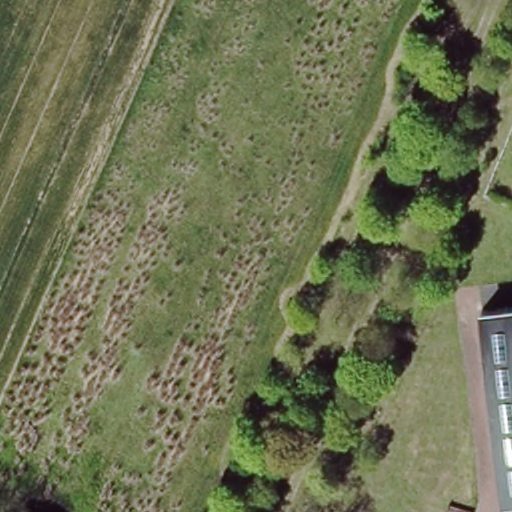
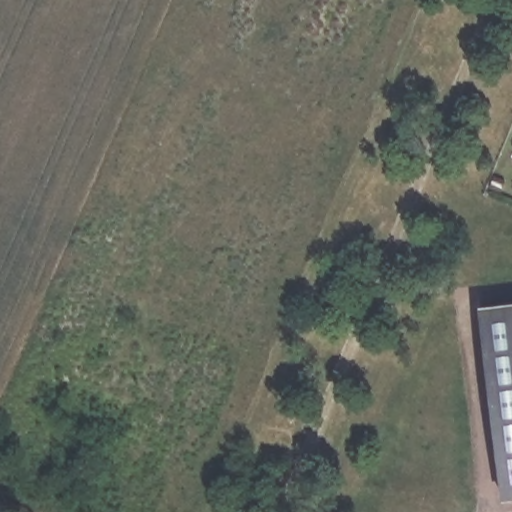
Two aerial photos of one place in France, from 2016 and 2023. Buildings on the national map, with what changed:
unchanged [(489,491),(490,304),(512,304),(512,491),(489,491)]

